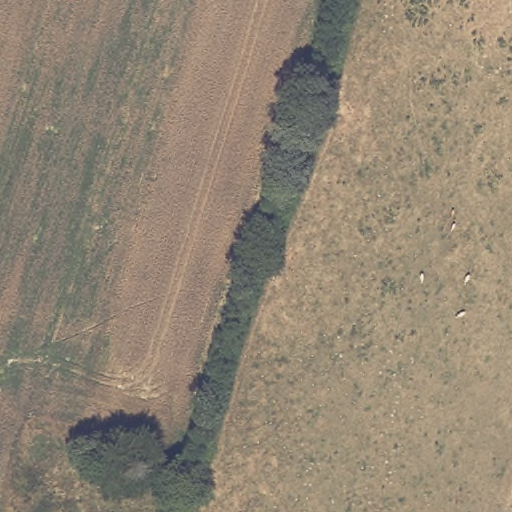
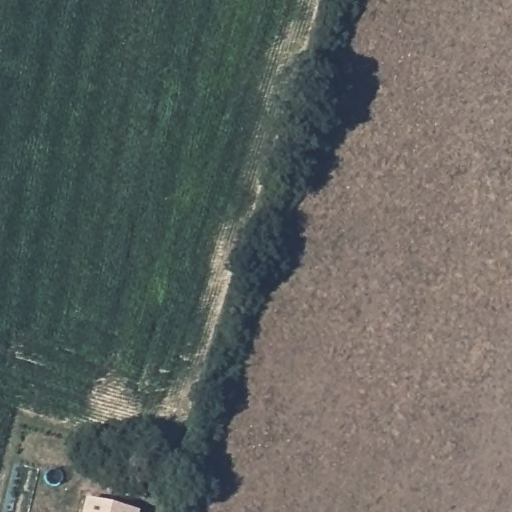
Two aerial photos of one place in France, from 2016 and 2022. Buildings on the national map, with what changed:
new [(142,512),(83,512),(86,499),(142,512)]

